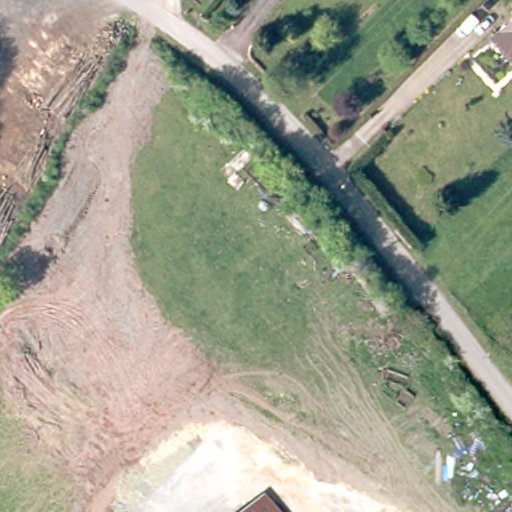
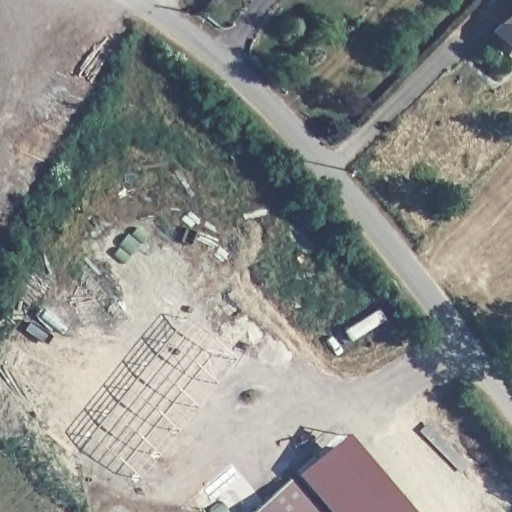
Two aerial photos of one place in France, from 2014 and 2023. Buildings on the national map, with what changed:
unchanged [(508,49),(493,32),(512,15),(512,53),(508,49)]
new [(406,512),(327,512),(293,473),(338,434),(406,512)]
new [(321,512),(276,512),(265,500),(291,478),(321,512)]
unchanged [(276,512),(251,512),(265,500),(276,512)]

